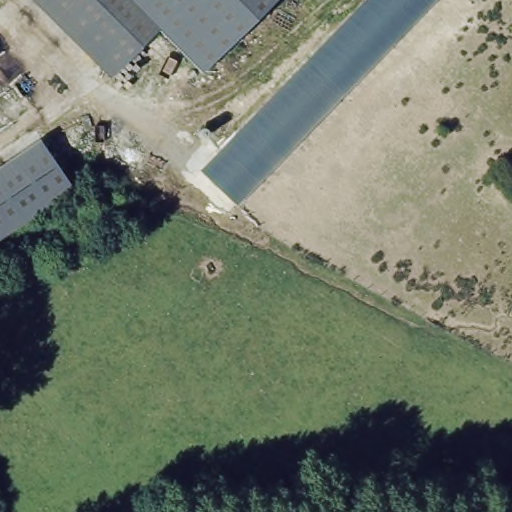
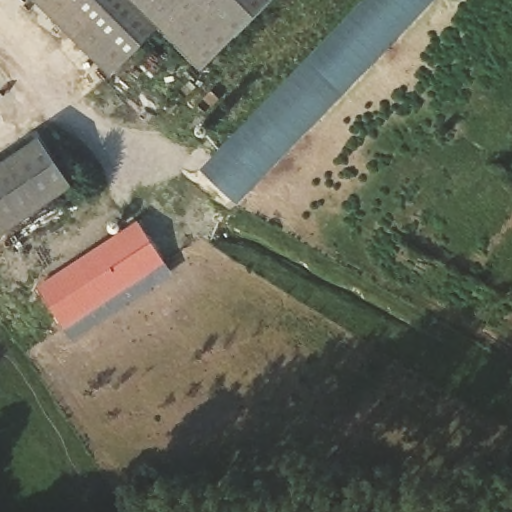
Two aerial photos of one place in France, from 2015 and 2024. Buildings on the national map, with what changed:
unchanged [(163,26),(115,75),(40,0),(274,0),(205,71),(163,26)]
unchanged [(200,169),(364,0),(435,0),(237,205),(200,169)]
unchanged [(75,187),(0,239),(0,163),(40,136),(75,187)]
new [(37,286),(138,222),(165,263),(64,329),(37,286)]

